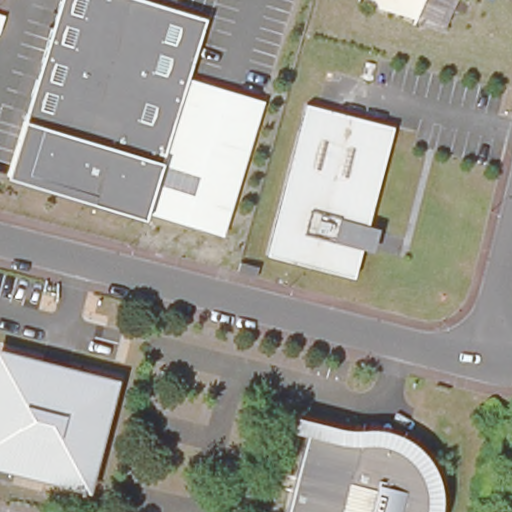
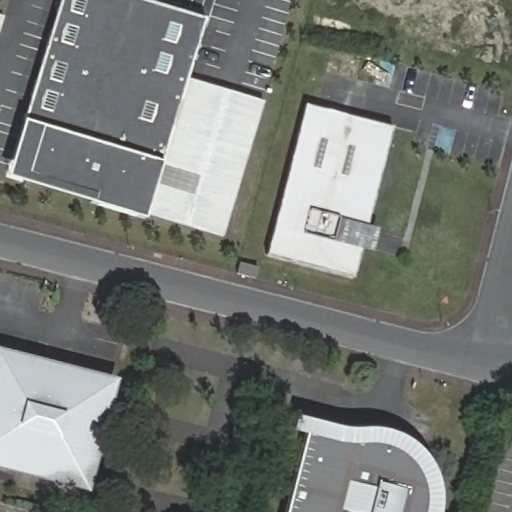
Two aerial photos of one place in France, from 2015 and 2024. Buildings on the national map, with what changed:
unchanged [(203,17),(184,79),(263,100),(220,235),(145,214),(144,218),(4,177),(22,120),(57,0),(145,0),(203,17)]
unchanged [(415,20),(364,5),(366,0),(425,0),(415,20)]
unchanged [(394,130),(356,281),(269,260),(306,108),(394,130)]
unchanged [(258,262),(258,267),(257,272),(250,271),(240,268),(242,257),(258,262)]
unchanged [(110,387),(85,486),(0,465),(0,360),(110,387)]
unchanged [(360,446),(396,455),(406,449),(408,451),(411,453),(415,457),(417,460),(420,464),(423,468),(425,472),(427,476),(429,480),(430,484),(431,489),(432,493),(432,494),(432,498),(432,503),(432,507),(432,512),(288,512),(306,438),(334,445),(360,446)]

